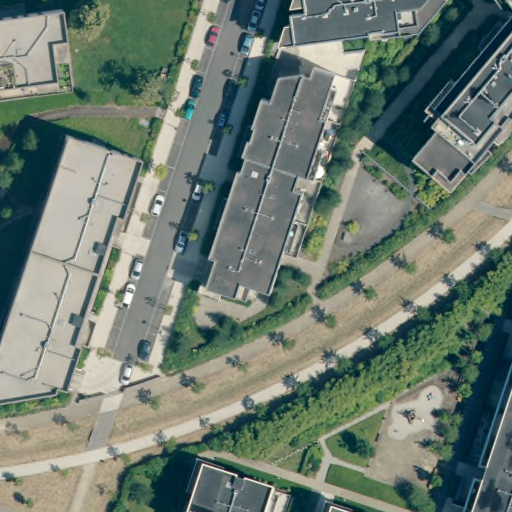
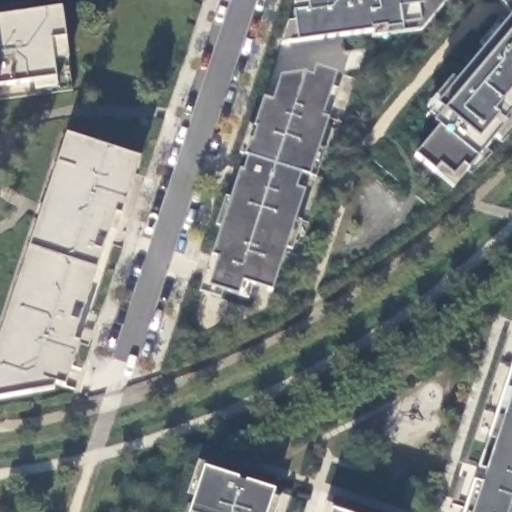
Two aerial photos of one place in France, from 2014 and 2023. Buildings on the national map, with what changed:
unchanged [(287,25),(294,24),(293,15),(307,13),(306,7),(292,9),(295,0),(449,0),(421,33),(372,40),(371,35),(297,45),(280,47),(287,25)]
unchanged [(501,0),(512,0),(512,15),(501,0)]
unchanged [(66,41),(51,43),(56,80),(0,88),(0,18),(61,10),(66,41)]
unchanged [(463,178),(458,174),(448,186),(435,174),(430,180),(410,163),(434,134),(429,130),(438,118),(431,113),(512,17),(512,120),(463,178)]
unchanged [(238,297),(207,287),(214,268),(207,266),(240,170),(244,171),(249,158),(244,157),(249,141),(251,142),(256,129),(253,128),(263,99),(272,102),(280,77),(306,73),(305,75),(311,77),(315,68),(355,82),(298,258),(285,253),(271,292),(242,283),(238,297)]
unchanged [(65,166),(0,365),(0,336),(66,135),(84,141),(75,169),(65,166)]
unchanged [(0,399),(0,393),(4,383),(0,381),(0,365),(65,166),(75,169),(84,141),(140,159),(121,218),(115,216),(74,342),(80,344),(65,388),(56,385),(54,390),(31,394),(0,399)]
unchanged [(0,393),(0,381),(4,383),(0,393)]
unchanged [(472,512),(512,392),(512,512),(472,512)]
unchanged [(275,492),(268,512),(189,512),(204,468),(275,492)]
unchanged [(338,512),(331,512),(331,510),(338,512)]

